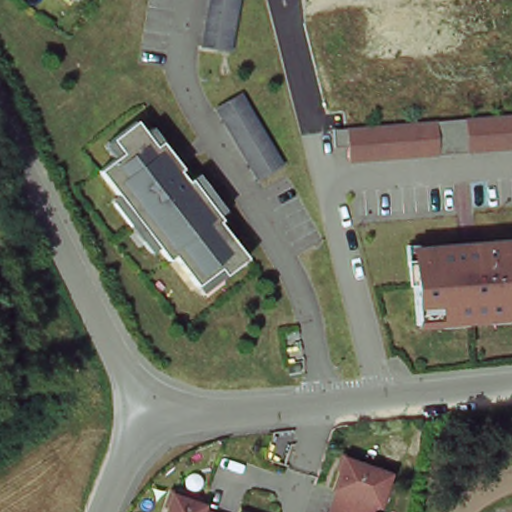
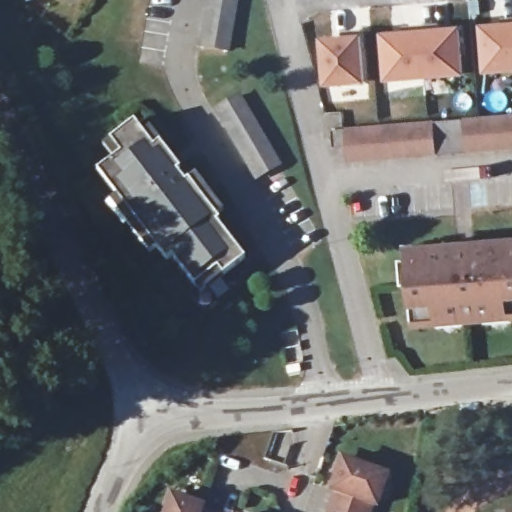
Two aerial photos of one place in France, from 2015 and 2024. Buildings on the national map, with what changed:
unchanged [(231,48),(205,43),(213,0),(240,0),(231,48)]
new [(512,71),(479,72),(475,23),(512,21),(512,71)]
new [(358,34),(361,59),(377,58),(377,32),(456,27),(460,76),(380,82),(319,86),(315,36),(358,34)]
unchanged [(281,164),(257,177),(218,107),(241,94),(281,164)]
unchanged [(358,142),(344,143),(343,125),(512,114),(512,148),(359,158),(358,142)]
unchanged [(220,223),(217,225),(245,262),(222,279),(217,272),(194,289),(172,259),(166,263),(99,172),(122,155),(112,141),(136,123),(155,149),(161,144),(181,172),(178,174),(186,184),(190,182),(220,223)]
unchanged [(410,262),(405,262),(404,242),(415,241),(416,247),(512,241),(512,316),(509,316),(486,317),(462,319),(438,320),(413,322),(410,262)]
unchanged [(333,485),(344,455),(388,471),(386,477),(395,480),(388,498),(380,494),(377,501),(373,499),(368,512),(328,512),(337,486),(333,485)]
unchanged [(208,501),(206,505),(221,511),(224,512),(170,512),(178,490),(208,501)]

